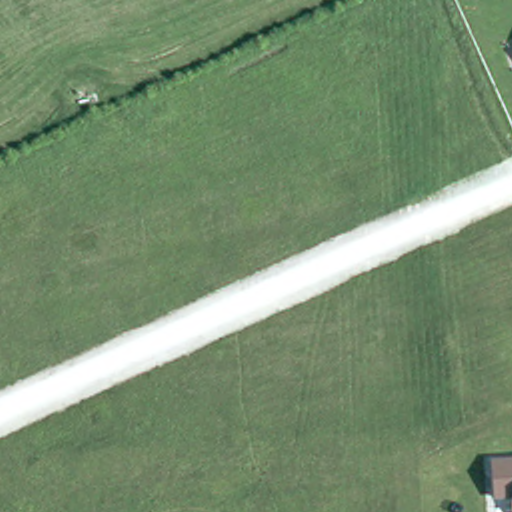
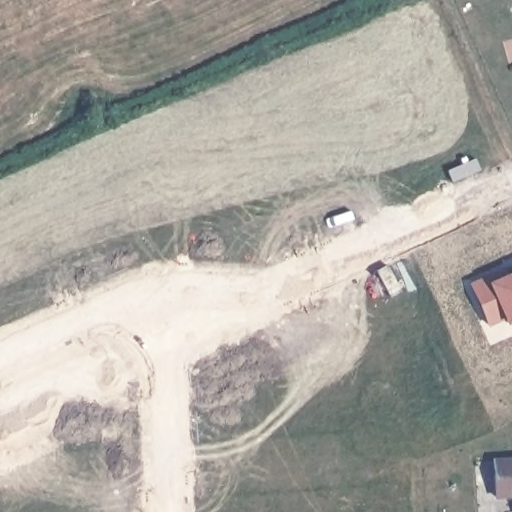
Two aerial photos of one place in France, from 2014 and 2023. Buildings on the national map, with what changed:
new [(505,270),(508,276),(512,274),(512,320),(507,322),(505,317),(488,325),(470,285),(505,270)]
unchanged [(496,501),(493,460),(512,458),(512,499),(496,501)]

